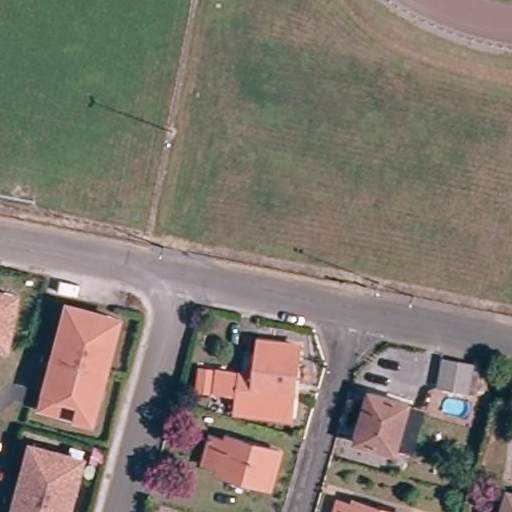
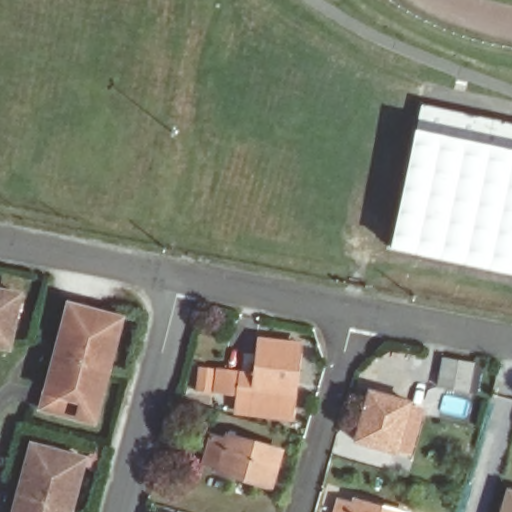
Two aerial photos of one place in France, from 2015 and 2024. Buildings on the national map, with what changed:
new [(512,125),(512,276),(390,250),(416,130),(423,107),(512,125)]
unchanged [(21,299),(19,313),(10,351),(0,348),(0,294),(6,295),(21,299)]
unchanged [(58,360),(63,345),(73,310),(110,321),(124,325),(119,341),(99,411),(94,427),(80,423),(43,412),(58,360)]
unchanged [(257,396),(244,394),(248,367),(260,369),(266,332),(305,339),(297,390),(295,403),(257,396)]
unchanged [(460,390),(439,384),(447,355),(456,357),(468,360),(460,390)]
unchanged [(238,389),(225,387),(228,371),(240,373),(238,389)]
unchanged [(395,451),(357,440),(371,390),(409,401),(395,451)]
unchanged [(272,485),(215,470),(216,464),(205,461),(212,435),(224,438),(225,432),(282,447),(272,485)]
unchanged [(27,480),(37,445),(74,456),(88,460),(84,476),(73,512),(18,512),(23,495),(27,480)]
unchanged [(512,497),(512,512),(505,512),(510,496),(512,497)]
unchanged [(352,503),(353,498),(401,512),(335,512),(339,499),(352,503)]

